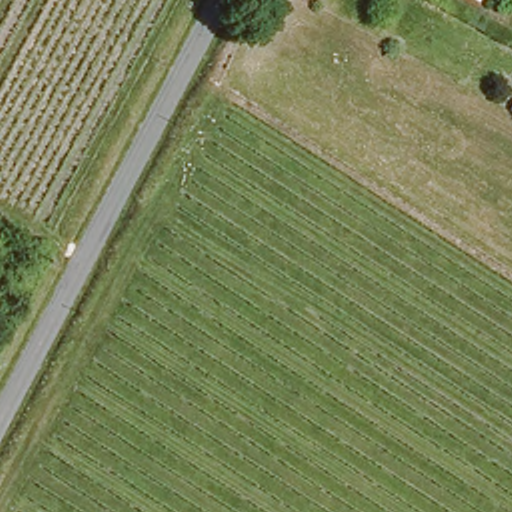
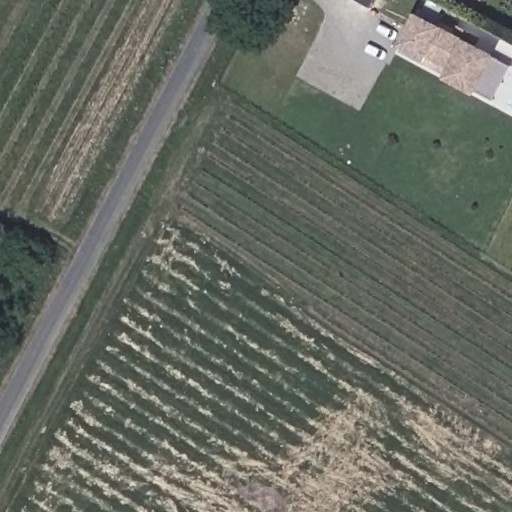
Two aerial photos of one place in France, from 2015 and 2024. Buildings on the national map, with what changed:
new [(479,94),(446,78),(425,63),(400,50),(402,45),(420,13),(446,27),(457,32),(459,27),(483,38),(481,43),(500,54),(497,57),(512,65),(512,69),(495,101),(479,94)]

